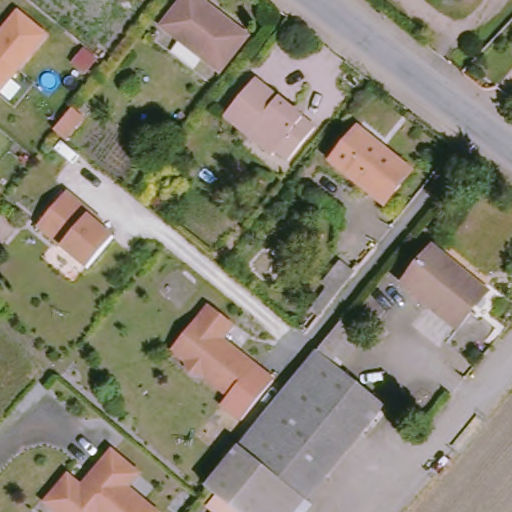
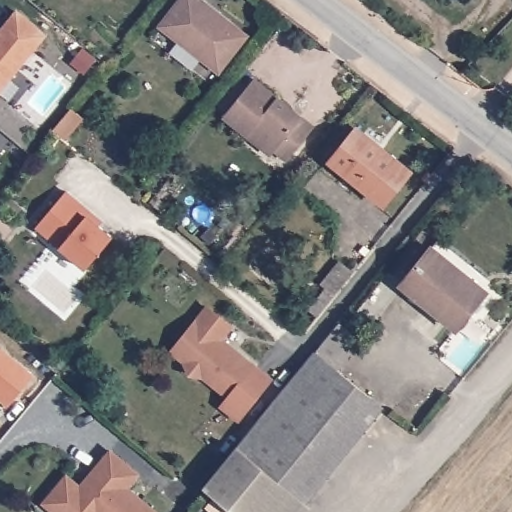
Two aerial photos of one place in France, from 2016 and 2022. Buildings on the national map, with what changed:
unchanged [(219,73),(160,26),(181,0),(203,0),(218,12),(249,35),(219,73)]
unchanged [(0,95),(0,44),(2,42),(0,41),(0,35),(17,13),(47,36),(0,95)]
unchanged [(249,133),(225,114),(255,76),(313,122),(287,155),(277,147),(272,152),(249,133)]
unchanged [(73,111),(57,131),(44,122),(60,102),(73,111)]
unchanged [(357,126),(382,145),(384,143),(412,166),(385,199),(332,157),(357,126)]
unchanged [(89,271),(39,230),(68,194),(92,214),(104,224),(101,228),(115,239),(89,271)]
unchanged [(483,286),(479,292),(492,301),(475,322),(462,312),(460,316),(464,319),(451,334),(395,290),(432,245),(483,286)]
unchanged [(229,326),(219,340),(253,366),(272,380),(242,421),(222,407),(229,398),(200,376),(190,373),(184,363),(170,354),(177,345),(204,308),(229,326)]
unchanged [(358,340),(335,370),(372,399),(298,493),(238,447),(295,375),(337,323),(358,340)]
new [(0,398),(0,346),(35,374),(9,405),(0,398)]
unchanged [(298,493),(297,495),(305,501),(296,512),(235,512),(205,489),(238,447),(298,493)]
unchanged [(62,479),(73,478),(85,488),(90,481),(87,478),(111,449),(138,471),(127,485),(159,511),(158,512),(57,512),(45,501),(54,490),(62,479)]
unchanged [(209,512),(196,512),(202,505),(209,512)]

